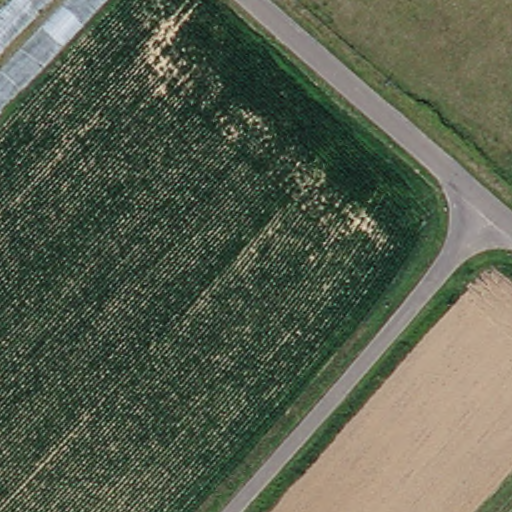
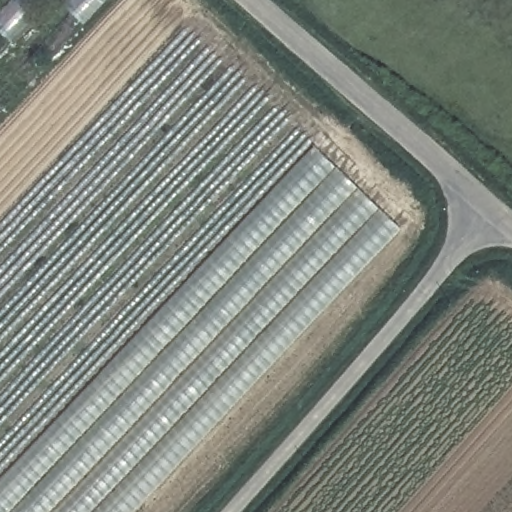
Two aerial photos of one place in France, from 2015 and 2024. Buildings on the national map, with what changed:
unchanged [(0,105),(0,0),(98,0),(0,105)]
new [(0,512),(0,479),(315,146),(400,228),(132,512),(0,512)]

